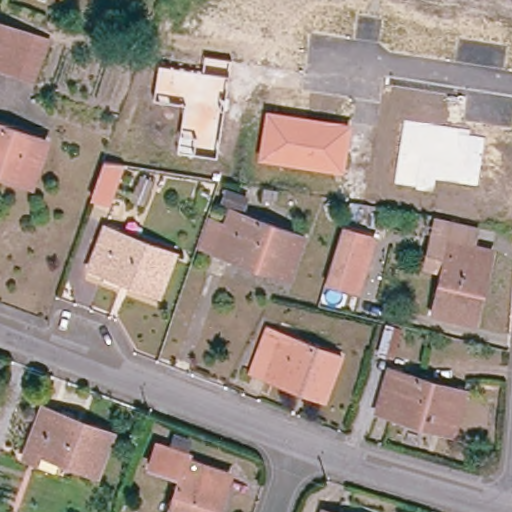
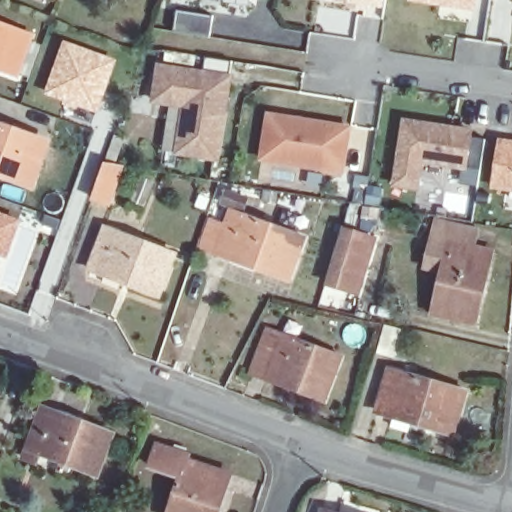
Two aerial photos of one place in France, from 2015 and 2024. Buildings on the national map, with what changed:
new [(368,2),(367,8),(350,6),(351,0),(388,0),(387,6),(368,2)]
new [(416,0),(476,0),(475,10),(416,0)]
new [(179,9),(215,15),(212,37),(175,31),(179,9)]
unchanged [(33,36),(19,74),(0,66),(0,24),(33,36)]
new [(63,40),(117,60),(97,114),(43,95),(63,40)]
new [(232,76),(219,162),(174,155),(180,107),(151,103),(158,65),(232,76)]
unchanged [(352,127),(345,176),(258,162),(266,112),(352,127)]
new [(466,170),(421,164),(419,190),(392,187),(403,120),(471,130),(466,170)]
unchanged [(49,142),(35,180),(0,168),(0,125),(49,142)]
new [(512,189),(494,187),(501,142),(512,144),(512,189)]
unchanged [(114,163),(101,207),(89,203),(104,161),(114,163)]
demolished [(406,216),(403,239),(355,230),(357,207),(406,216)]
new [(21,219),(7,259),(0,257),(0,211),(21,219)]
unchanged [(483,227),(479,247),(496,251),(488,290),(481,323),(435,313),(444,266),(430,263),(435,237),(439,218),(483,227)]
unchanged [(303,247),(288,289),(220,262),(202,254),(211,229),(229,237),(236,220),(303,247)]
unchanged [(108,230),(175,255),(162,298),(93,273),(95,267),(108,230)]
unchanged [(374,242),(360,295),(332,287),(345,234),(374,242)]
unchanged [(276,332),(336,355),(319,398),(298,390),(258,376),(260,372),(276,332)]
unchanged [(394,372),(465,392),(451,437),(417,427),(379,415),(382,408),(394,372)]
unchanged [(44,410),(88,426),(117,437),(102,477),(30,452),(43,414),(44,410)]
unchanged [(228,512),(179,512),(190,483),(147,470),(155,447),(204,463),(203,471),(231,480),(238,482),(228,512)]
unchanged [(324,508),(335,512),(323,512),(324,508)]

